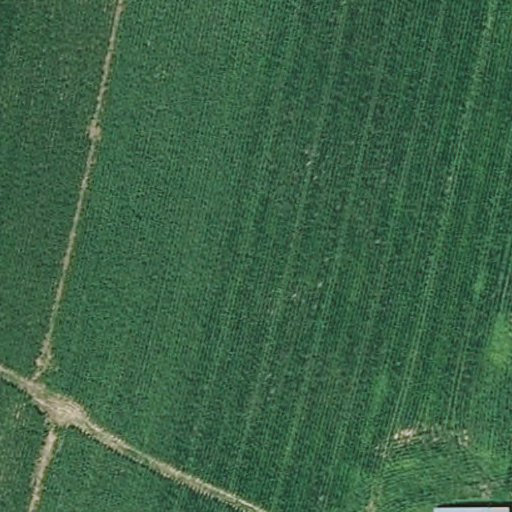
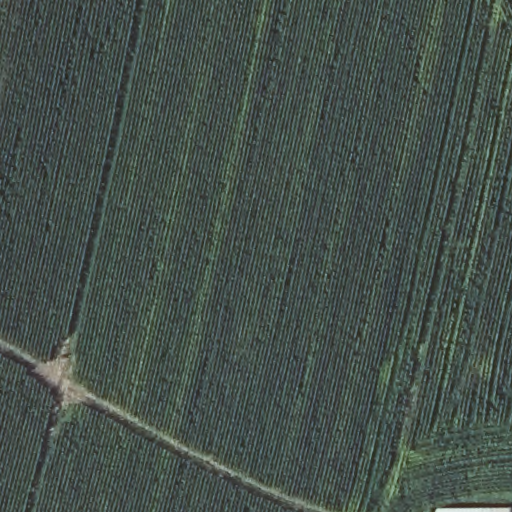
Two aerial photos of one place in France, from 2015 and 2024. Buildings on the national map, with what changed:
unchanged [(437,509),(512,509),(512,512),(437,512),(437,509)]

